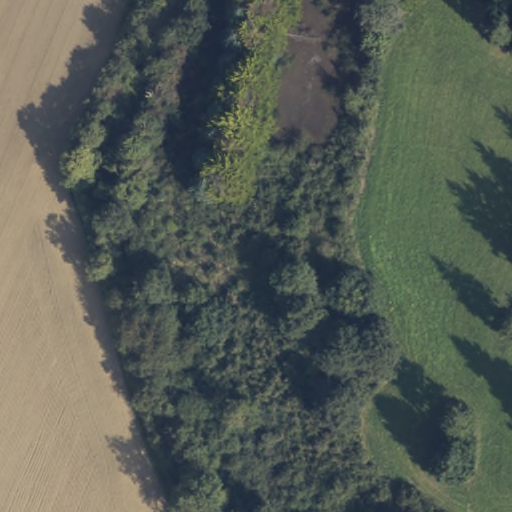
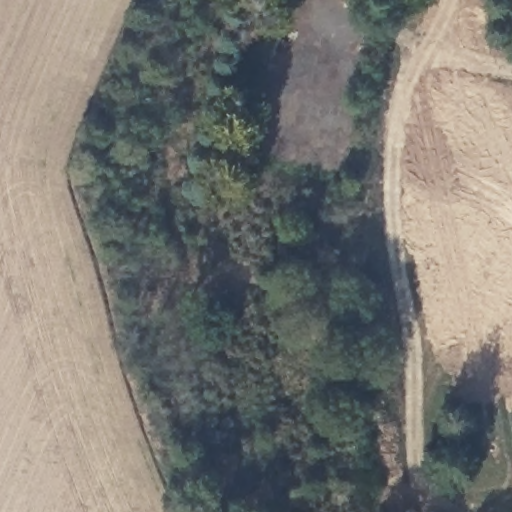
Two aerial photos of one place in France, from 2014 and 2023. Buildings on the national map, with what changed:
[]

